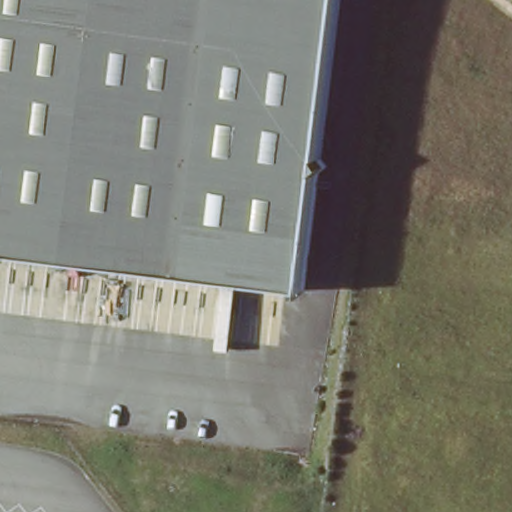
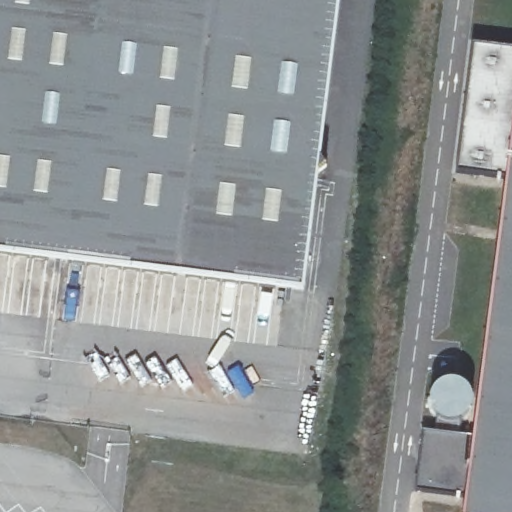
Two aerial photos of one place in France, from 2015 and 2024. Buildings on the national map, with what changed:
unchanged [(325,306),(0,263),(0,0),(360,0),(325,306)]
new [(464,512),(467,495),(419,492),(428,432),(474,436),(477,419),(459,422),(445,421),(433,408),(432,391),(441,382),(453,379),(468,382),(478,393),(506,177),(457,174),(473,44),(512,47),(512,512),(464,512)]

